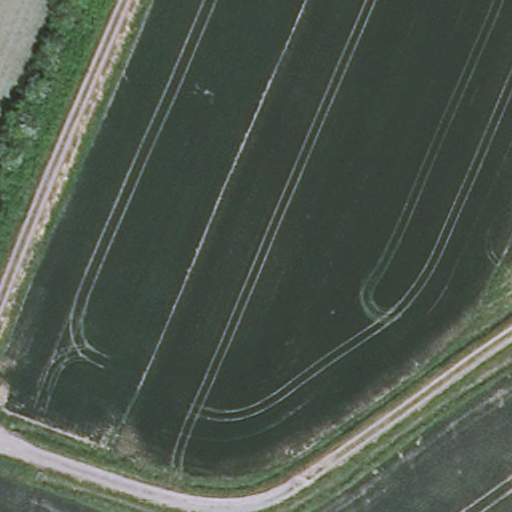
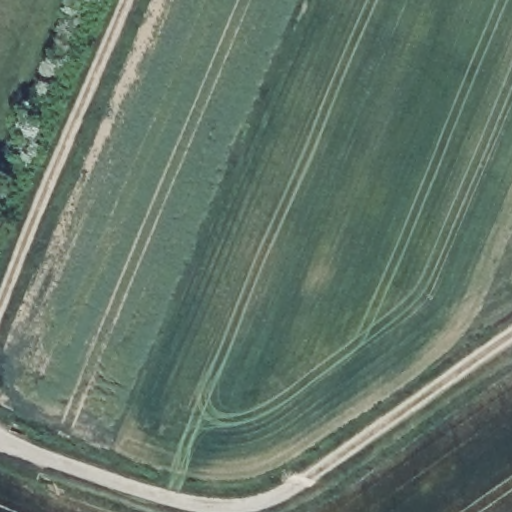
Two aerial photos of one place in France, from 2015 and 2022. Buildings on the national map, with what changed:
[]

